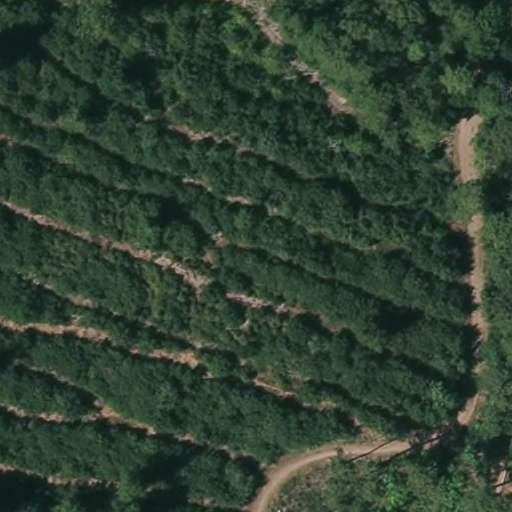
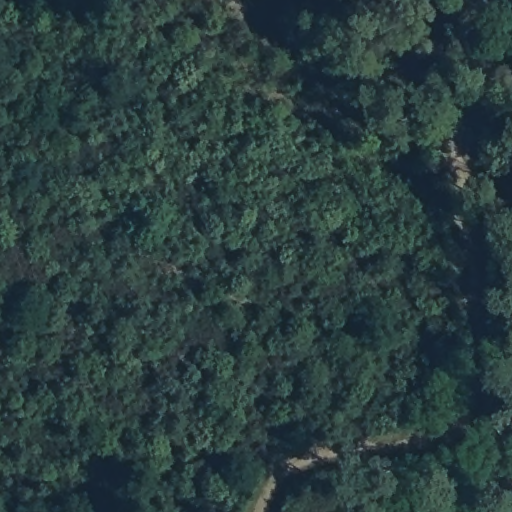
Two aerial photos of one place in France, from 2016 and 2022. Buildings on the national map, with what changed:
[]

